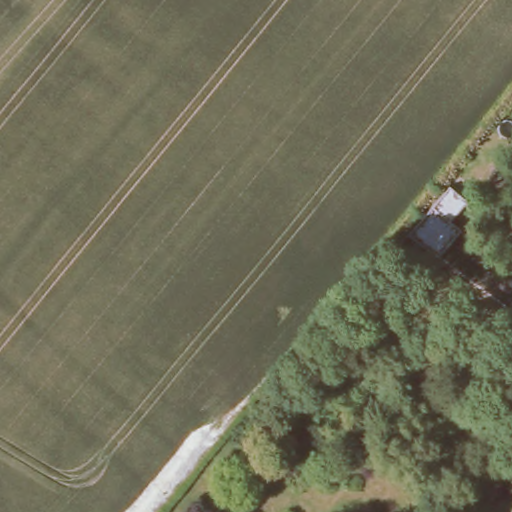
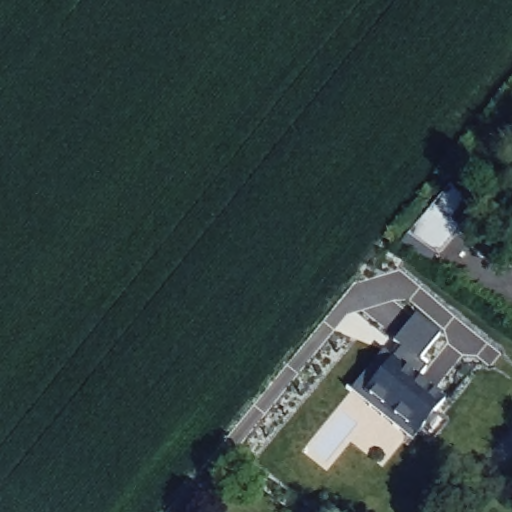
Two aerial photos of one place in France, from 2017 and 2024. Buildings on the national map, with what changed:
unchanged [(410,234),(450,185),(469,201),(451,222),(461,229),(440,254),(410,234)]
new [(365,399),(354,390),(385,352),(393,358),(401,348),(394,342),(415,315),(439,335),(418,361),(426,367),(416,379),(444,402),(417,434),(365,392),(365,399)]

